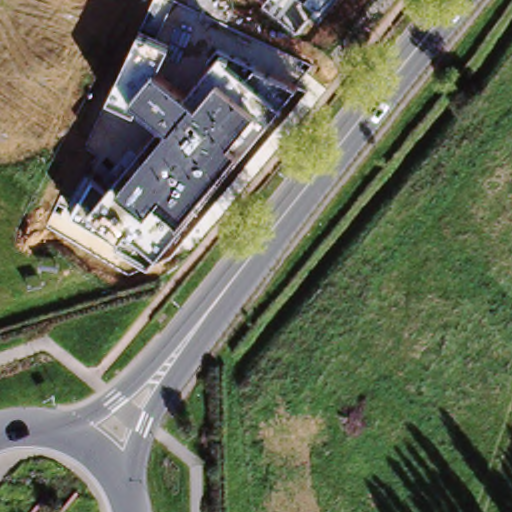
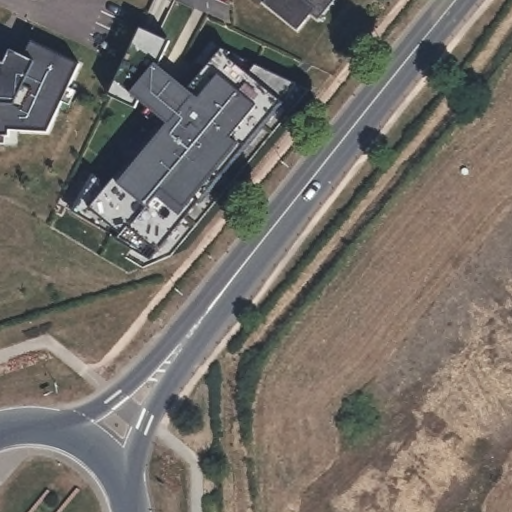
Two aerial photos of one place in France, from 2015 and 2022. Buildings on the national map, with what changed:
unchanged [(313,13),(298,29),(261,0),(334,0),(318,19),(313,13)]
unchanged [(299,82),(152,262),(71,210),(93,172),(112,181),(163,119),(140,98),(136,108),(108,94),(140,27),(170,41),(158,67),(186,89),(221,43),(299,82)]
new [(4,61),(10,49),(24,55),(32,40),(80,64),(46,131),(8,129),(8,135),(0,135),(0,61),(4,61)]

